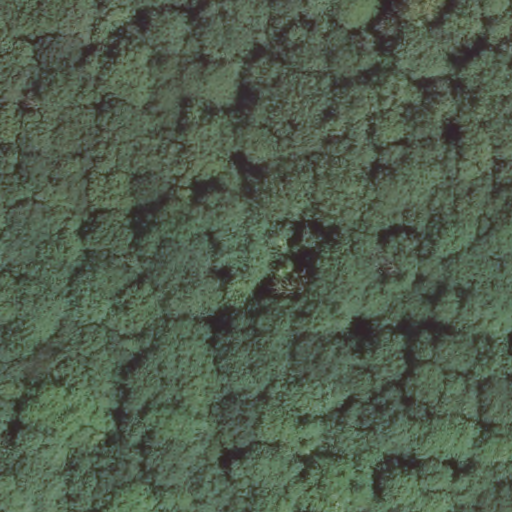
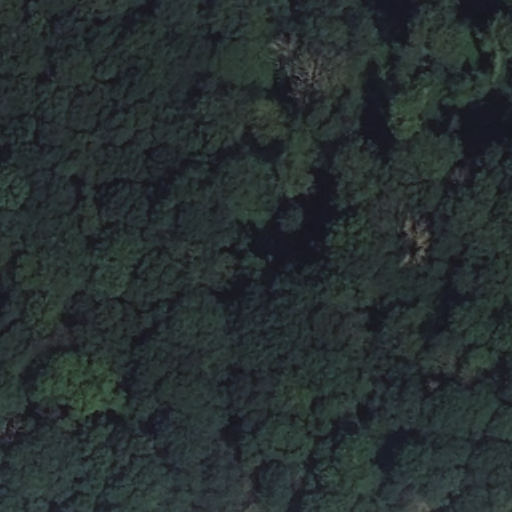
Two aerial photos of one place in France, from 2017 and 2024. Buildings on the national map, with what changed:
unchanged [(326,214),(326,239),(301,244),(296,219),(326,214)]

